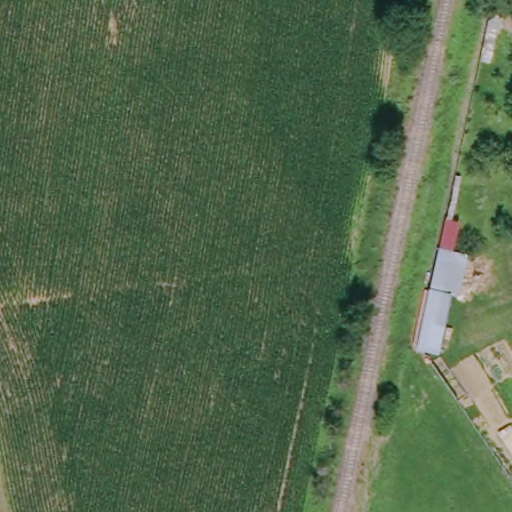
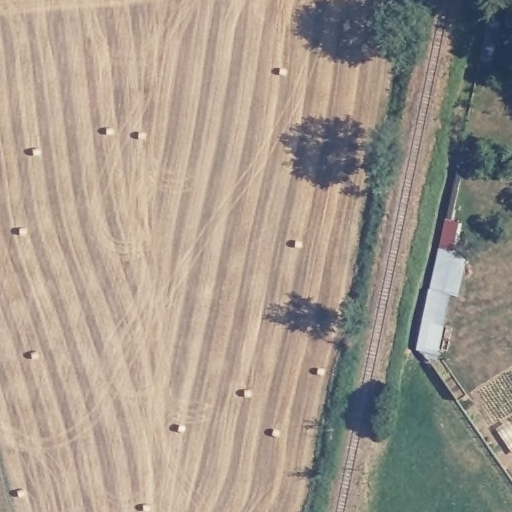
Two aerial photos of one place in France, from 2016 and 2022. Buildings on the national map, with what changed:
unchanged [(468,257),(465,271),(457,268),(456,275),(461,277),(452,299),(448,297),(442,325),(447,327),(447,339),(438,340),(434,354),(410,350),(423,291),(433,248),(449,251),(468,257)]

